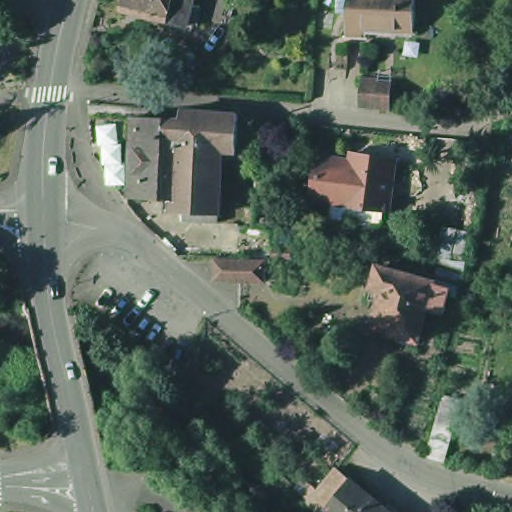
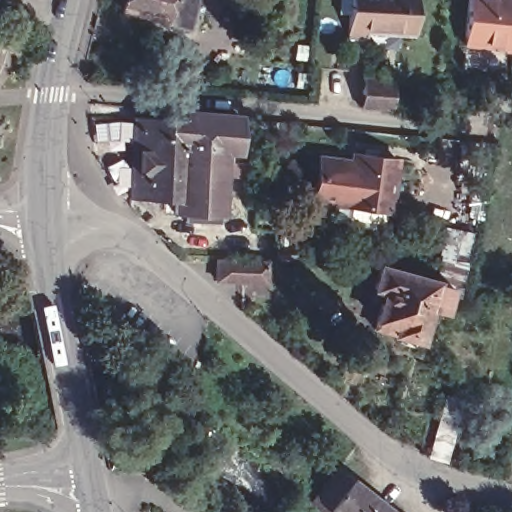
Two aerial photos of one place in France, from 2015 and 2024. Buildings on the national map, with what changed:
unchanged [(147,10),(118,4),(119,0),(201,0),(197,15),(193,15),(190,27),(145,17),(147,10)]
unchanged [(423,30),(405,29),(405,25),(376,24),(376,36),(355,35),(357,0),(425,0),(423,30)]
new [(467,0),(512,0),(512,52),(462,49),(467,0)]
unchanged [(362,81),(395,84),(394,112),(361,110),(362,81)]
unchanged [(229,215),(197,214),(197,205),(188,204),(188,190),(141,190),(143,110),(196,110),(196,103),(250,109),(249,145),(235,144),(229,215)]
unchanged [(322,197),(327,152),(359,155),(360,149),(401,153),(395,205),(394,220),(355,215),(357,201),(322,197)]
unchanged [(440,256),(445,229),(472,234),(468,260),(440,256)]
unchanged [(278,256),(280,241),(295,243),(293,254),(293,257),(278,256)]
unchanged [(382,299),(372,296),(376,280),(382,257),(453,277),(446,304),(430,300),(422,329),(412,335),(402,332),(400,325),(397,323),(377,318),(379,311),(382,299)]
unchanged [(268,263),(267,283),(218,281),(219,261),(268,263)]
unchanged [(430,456),(448,396),(465,401),(447,461),(430,456)]
unchanged [(344,512),(334,512),(328,506),(350,476),(355,471),(368,483),(403,512),(345,512),(345,511),(344,512)]

